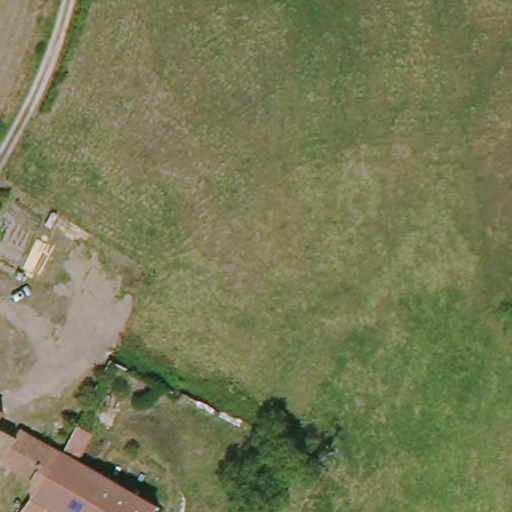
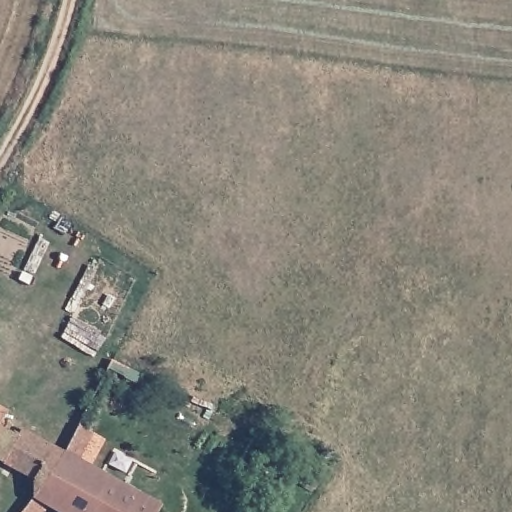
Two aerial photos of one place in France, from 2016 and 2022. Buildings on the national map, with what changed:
unchanged [(45,480),(0,453),(0,407),(8,411),(4,420),(23,433),(28,422),(65,443),(45,480)]
unchanged [(45,480),(65,443),(164,500),(158,512),(70,512),(51,500),(45,512),(27,512),(38,493),(45,480)]

